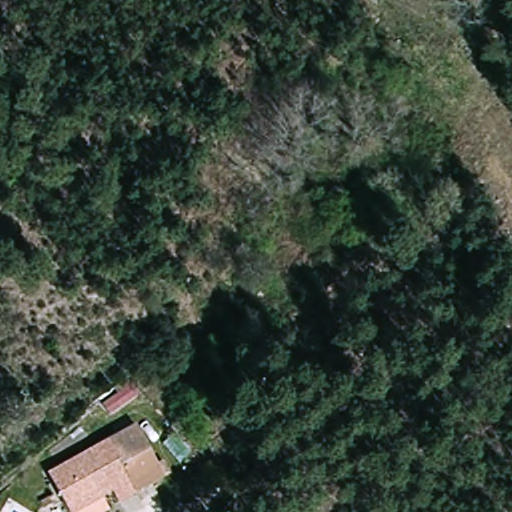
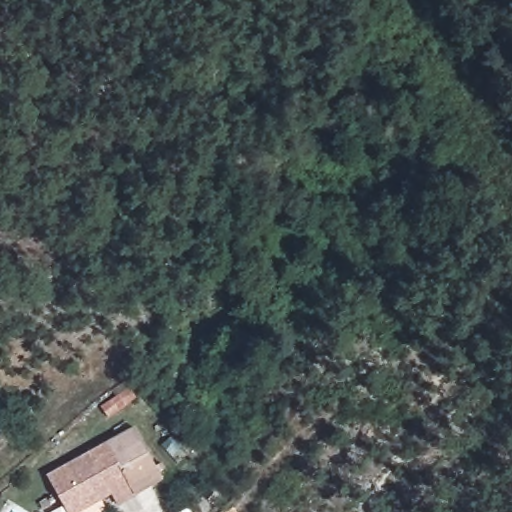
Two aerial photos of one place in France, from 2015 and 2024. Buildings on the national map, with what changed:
unchanged [(51,476),(140,437),(163,491),(117,510),(115,504),(97,512),(67,512),(51,476)]

